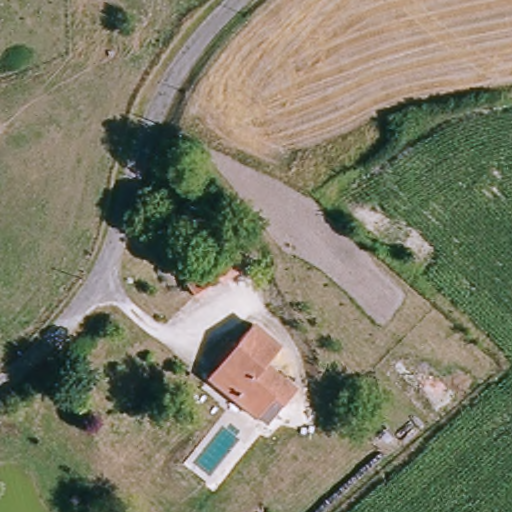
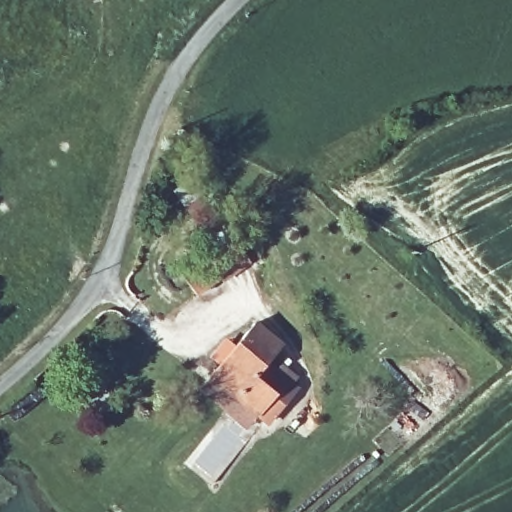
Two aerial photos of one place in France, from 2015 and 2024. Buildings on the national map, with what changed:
unchanged [(222,278),(195,295),(184,277),(210,261),(206,253),(236,234),(256,265),(226,285),(222,278)]
unchanged [(257,380),(277,396),(257,421),(209,379),(252,326),(282,351),(257,380)]

